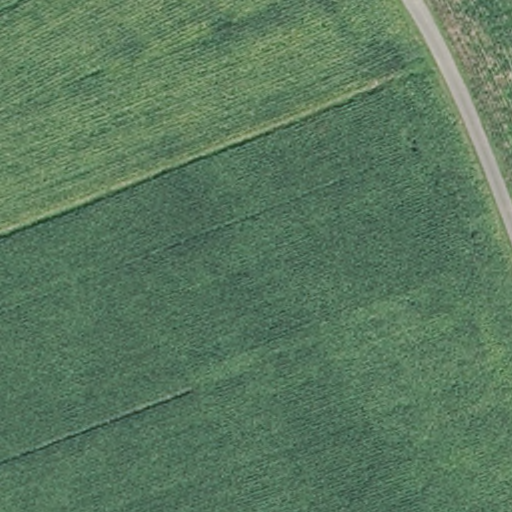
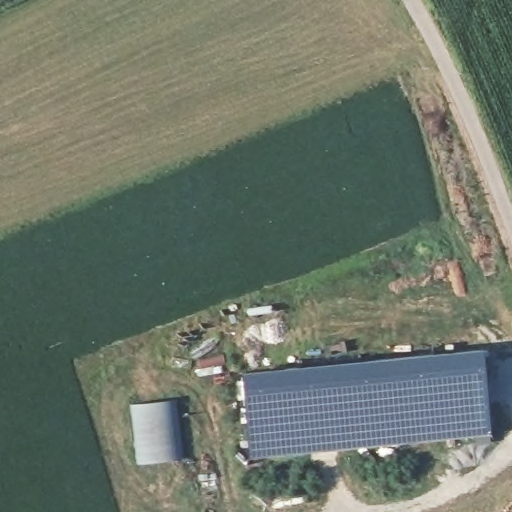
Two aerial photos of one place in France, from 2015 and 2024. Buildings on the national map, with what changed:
new [(249,458),(241,373),(481,349),(490,434),(249,458)]
new [(139,462),(131,404),(174,399),(181,456),(139,462)]

